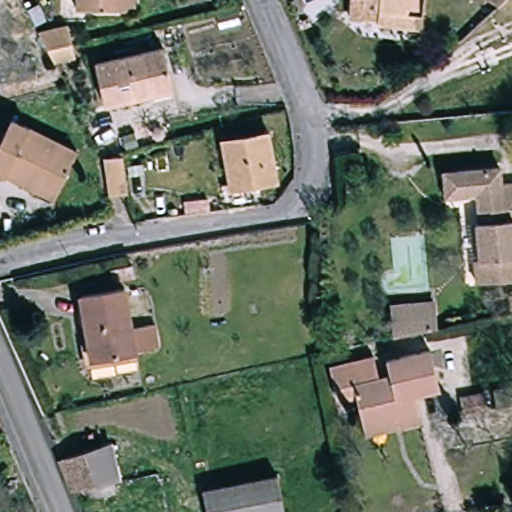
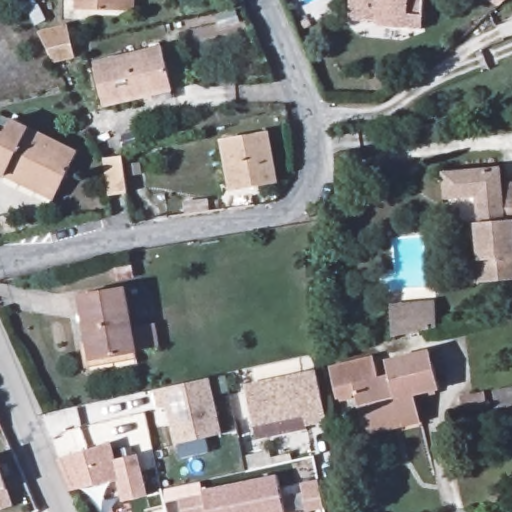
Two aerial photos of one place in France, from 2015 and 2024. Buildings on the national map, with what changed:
unchanged [(137,10),(91,9),(92,0),(137,0),(137,10)]
unchanged [(419,25),(375,20),(376,16),(349,14),(350,0),(422,0),(419,25)]
unchanged [(497,6),(486,0),(504,0),(497,6)]
unchanged [(40,34),(70,26),(75,42),(78,56),(55,61),(48,49),(40,34)]
unchanged [(163,47),(173,90),(105,104),(95,60),(163,47)]
unchanged [(75,157),(53,201),(0,173),(0,148),(13,123),(75,157)]
unchanged [(270,132),(280,180),(233,189),(223,142),(270,132)]
unchanged [(132,192),(111,195),(106,156),(127,154),(132,192)]
unchanged [(502,181),(512,180),(512,280),(482,285),(477,259),(484,257),(478,222),(481,222),(476,192),(459,195),(444,198),(441,174),(455,171),(499,164),(502,181)]
unchanged [(126,290),(133,330),(156,325),(161,347),(138,352),(138,353),(93,361),(81,298),(126,290)]
unchanged [(390,305),(434,303),(435,329),(391,338),(390,305)]
unchanged [(363,437),(359,421),(354,397),(335,401),(329,370),(369,361),(374,378),(386,375),(383,361),(428,351),(438,390),(412,396),(417,415),(419,425),(363,437)]
new [(253,438),(251,425),(241,385),(313,369),(324,419),(304,424),(305,426),(253,438)]
new [(206,379),(218,435),(176,443),(167,404),(158,406),(155,389),(206,379)]
unchanged [(485,393),(488,408),(463,412),(460,398),(485,393)]
unchanged [(59,455),(63,454),(109,440),(121,476),(74,490),(59,455)]
new [(14,507),(0,511),(0,461),(8,487),(14,507)]
unchanged [(275,512),(199,512),(196,493),(269,478),(275,512)]
new [(321,510),(308,512),(303,512),(298,485),(315,481),(321,510)]

